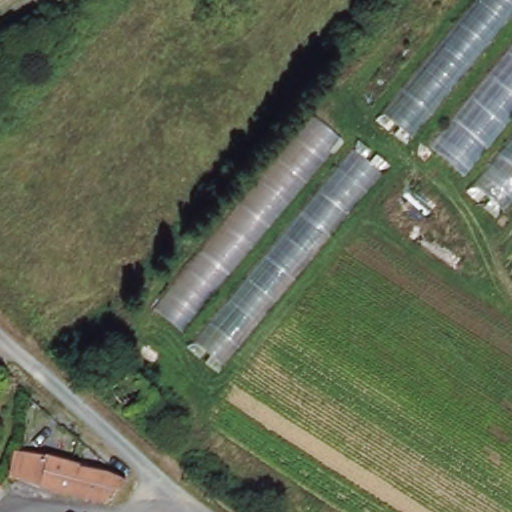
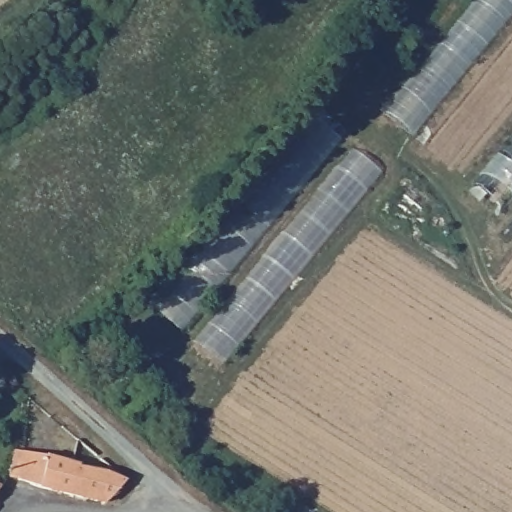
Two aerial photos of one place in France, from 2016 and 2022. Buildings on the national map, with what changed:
unchanged [(409,137),(382,116),(476,0),(512,0),(512,12),(409,137)]
demolished [(423,156),(512,48),(512,121),(457,187),(423,156)]
unchanged [(341,142),(185,335),(156,310),(311,119),(341,142)]
unchanged [(470,192),(512,141),(512,199),(498,216),(470,192)]
unchanged [(384,168),(221,368),(191,344),(358,144),(384,168)]
unchanged [(82,463),(81,466),(69,496),(31,482),(10,474),(16,450),(26,451),(42,457),(45,448),(82,463)]
unchanged [(109,477),(107,480),(127,487),(100,508),(69,496),(81,466),(109,477)]
unchanged [(0,491),(0,485),(3,486),(0,491)]

